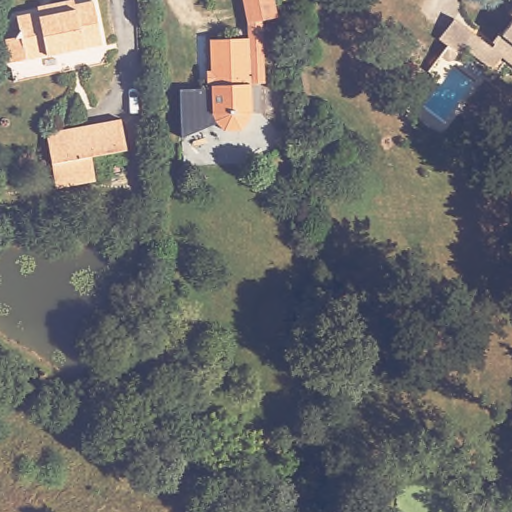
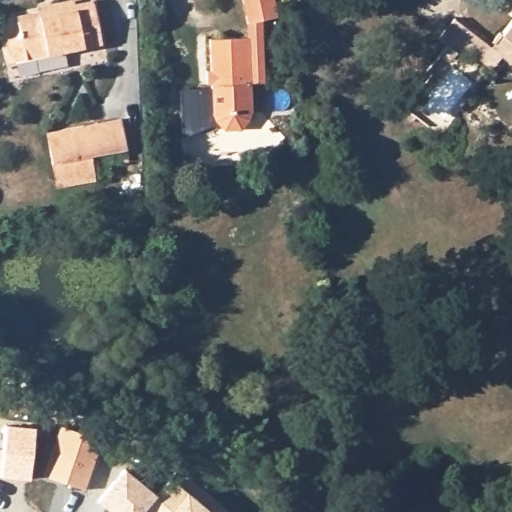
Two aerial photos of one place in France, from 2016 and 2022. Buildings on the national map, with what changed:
unchanged [(282,23),(254,27),(249,0),(279,0),(282,23)]
unchanged [(17,38),(14,21),(89,7),(97,47),(6,65),(2,44),(11,43),(17,38)]
unchanged [(507,20),(512,14),(512,24),(507,20)]
unchanged [(500,40),(512,25),(512,51),(500,40)]
unchanged [(250,121),(242,127),(233,128),(224,125),(217,118),(214,110),(211,39),(253,37),(254,115),(250,121)]
unchanged [(498,64),(488,75),(461,51),(470,40),(498,64)]
unchanged [(53,177),(49,162),(44,133),(119,119),(125,149),(88,155),(90,171),(53,177)]
new [(5,425),(34,428),(29,479),(0,476),(0,450),(3,450),(5,425)]
new [(60,425),(100,438),(84,488),(44,476),(60,425)]
new [(156,495),(172,479),(187,491),(214,512),(111,512),(99,501),(125,469),(156,495)]

